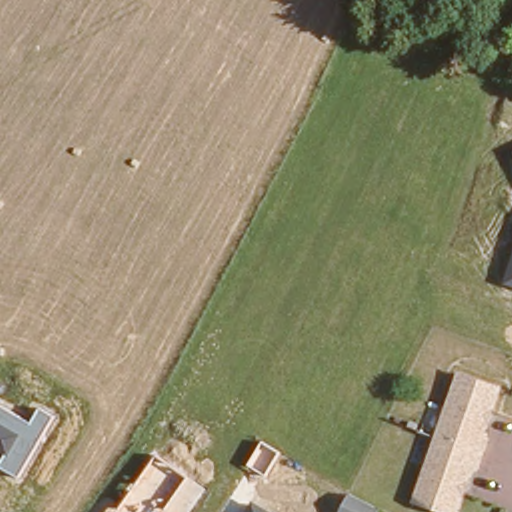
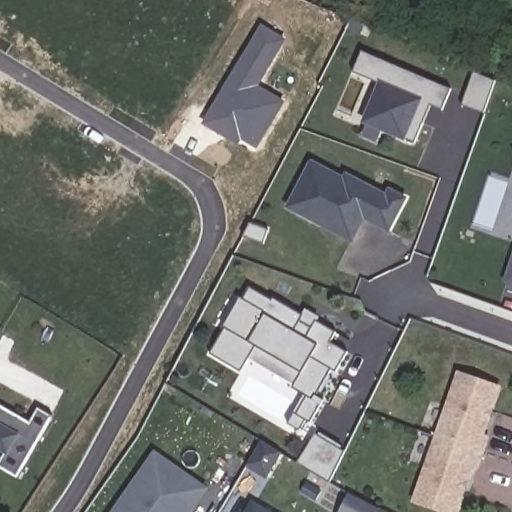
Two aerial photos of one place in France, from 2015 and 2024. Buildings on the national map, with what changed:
new [(262,24),(288,39),(260,86),(286,101),(258,149),(242,140),(239,144),(202,124),(262,24)]
new [(362,123),(378,83),(354,73),(362,52),(450,89),(442,109),(431,104),(416,143),(405,139),(362,123)]
new [(463,105),(473,73),(494,81),(484,113),(463,105)]
new [(390,233),(364,219),(353,241),(286,207),(311,160),(343,178),(346,174),(386,195),(389,189),(407,198),(390,233)]
unchanged [(512,254),(512,289),(501,285),(512,254)]
new [(288,424),(295,413),(293,412),(303,394),(292,388),(293,385),(248,359),(241,372),(211,353),(225,329),(223,327),(240,298),(243,300),(250,288),(272,301),(275,299),(302,315),(306,309),(320,318),(318,322),(335,332),(329,343),(347,353),(335,371),(330,368),(313,399),(321,404),(310,422),(306,419),(300,431),(288,424)]
unchanged [(509,393),(486,439),(491,442),(484,456),(440,434),(470,374),(509,393)]
unchanged [(19,480),(0,467),(0,465),(6,454),(0,451),(0,404),(32,424),(42,409),(55,417),(19,480)]
new [(340,449),(343,452),(329,482),(298,463),(315,434),(319,437),(321,432),(342,446),(340,449)]
unchanged [(476,471),(471,469),(449,512),(444,512),(409,495),(440,434),(484,456),(476,471)]
new [(267,479),(246,468),(261,440),(282,453),(267,479)]
new [(192,512),(112,512),(155,449),(209,488),(192,512)]
unchanged [(255,501),(272,512),(249,512),(255,501)]
unchanged [(348,501),(371,512),(343,512),(348,501)]

